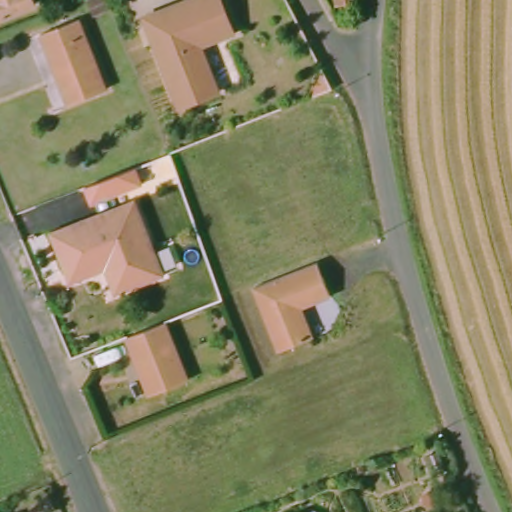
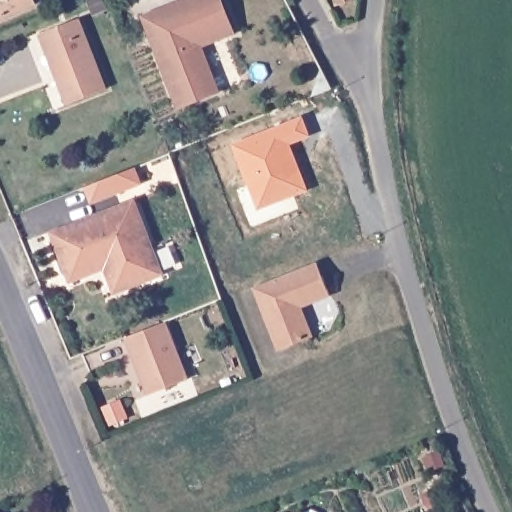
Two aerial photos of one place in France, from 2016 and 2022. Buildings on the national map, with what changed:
unchanged [(0,0),(30,0),(33,7),(0,19),(0,0)]
unchanged [(88,4),(99,0),(100,0),(105,13),(93,18),(88,4)]
unchanged [(193,39),(211,86),(172,100),(138,11),(168,0),(216,0),(227,26),(193,39)]
unchanged [(104,92),(62,107),(35,34),(75,19),(104,92)]
new [(230,139),(307,109),(312,135),(292,146),(307,194),(258,211),(230,139)]
new [(135,170),(141,187),(116,197),(90,207),(84,189),(110,180),(135,170)]
unchanged [(100,267),(64,280),(60,272),(44,230),(130,197),(159,273),(122,287),(109,292),(100,267)]
unchanged [(322,295),(295,306),(305,337),(272,349),(249,285),(311,261),(322,295)]
unchanged [(159,320),(180,379),(140,394),(120,336),(159,320)]
unchanged [(0,509),(1,512),(0,512),(0,509)]

